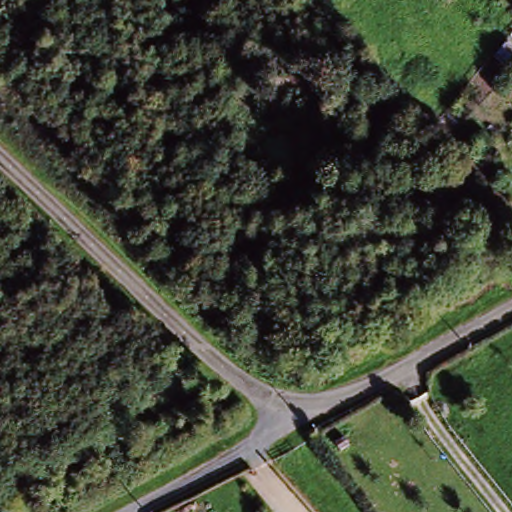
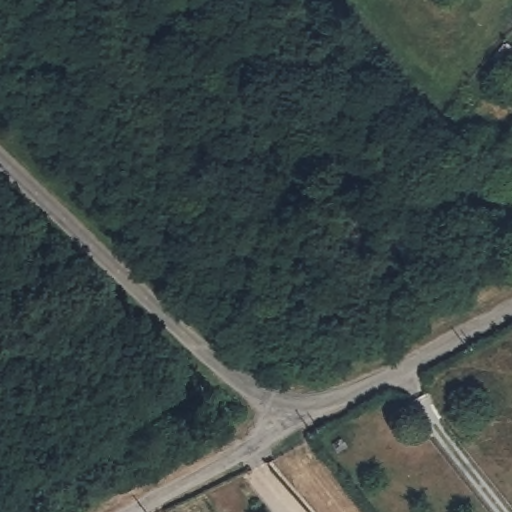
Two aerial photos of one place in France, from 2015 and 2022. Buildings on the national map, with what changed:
[]

